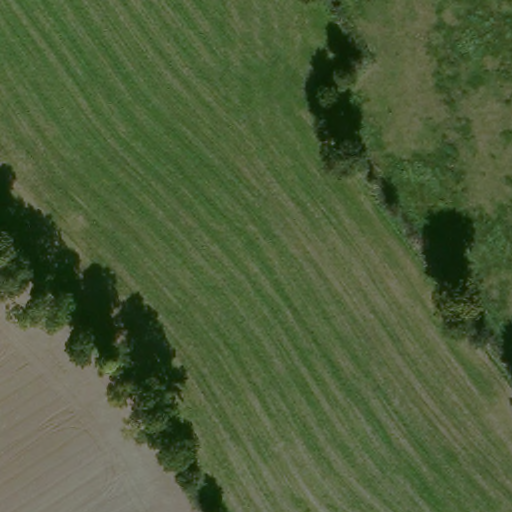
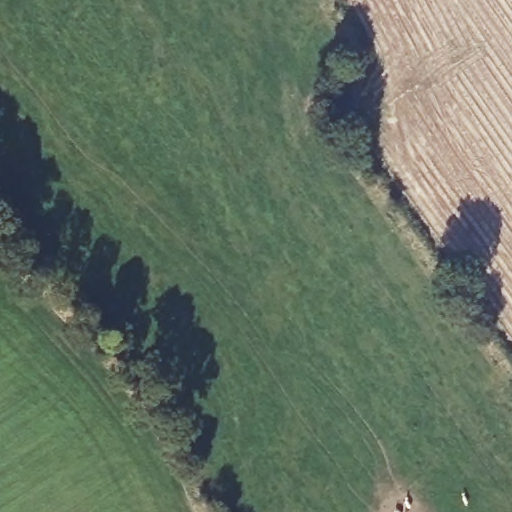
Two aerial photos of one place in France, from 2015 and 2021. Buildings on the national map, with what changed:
[]

